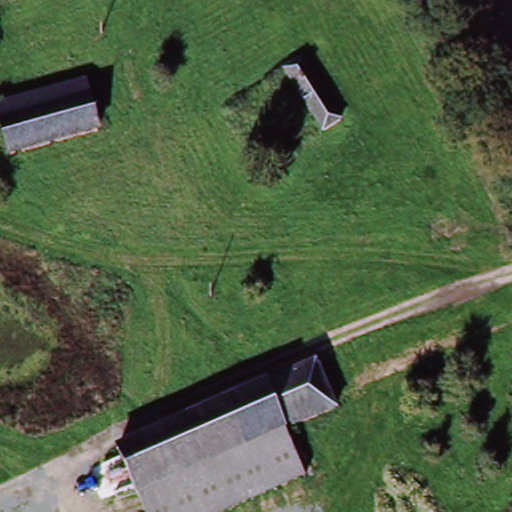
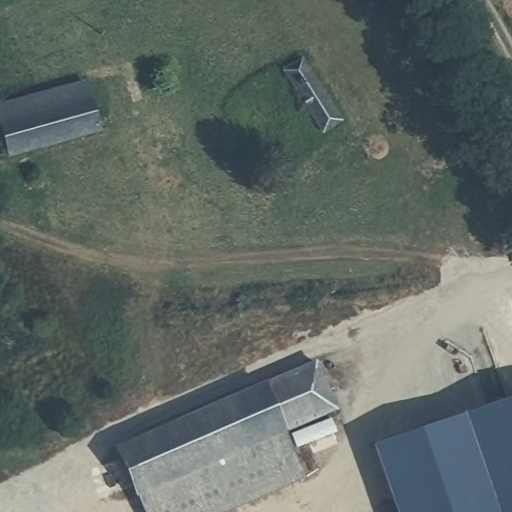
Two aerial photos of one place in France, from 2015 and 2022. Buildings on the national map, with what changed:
unchanged [(283,68),(302,57),(337,123),(317,135),(283,68)]
unchanged [(101,130),(10,156),(0,124),(0,105),(87,80),(101,130)]
unchanged [(126,441),(305,365),(325,411),(272,434),(146,488),(126,441)]
new [(512,512),(395,512),(372,446),(512,398),(512,512)]
unchanged [(272,434),(293,483),(229,512),(156,512),(146,488),(272,434)]

